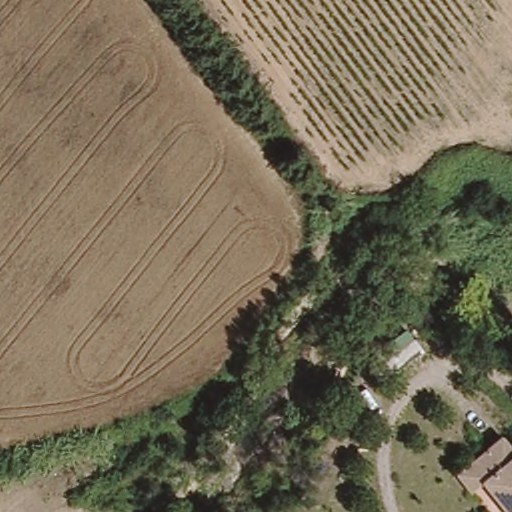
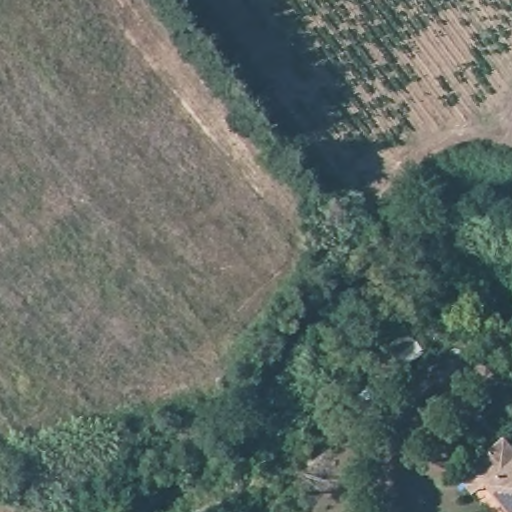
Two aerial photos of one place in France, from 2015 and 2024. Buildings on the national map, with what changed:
unchanged [(466,494),(452,477),(465,467),(498,441),(512,458),(512,512),(500,512),(478,484),(466,494)]

